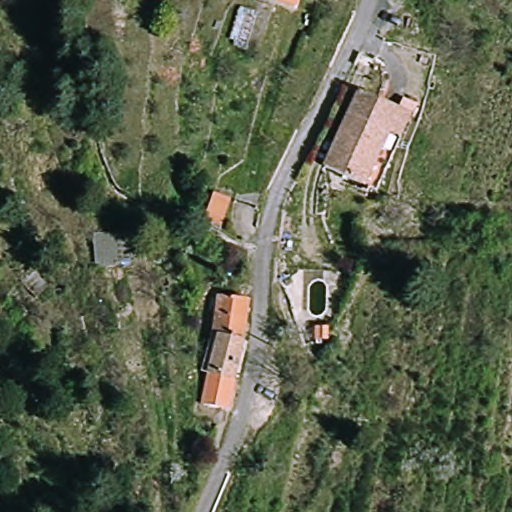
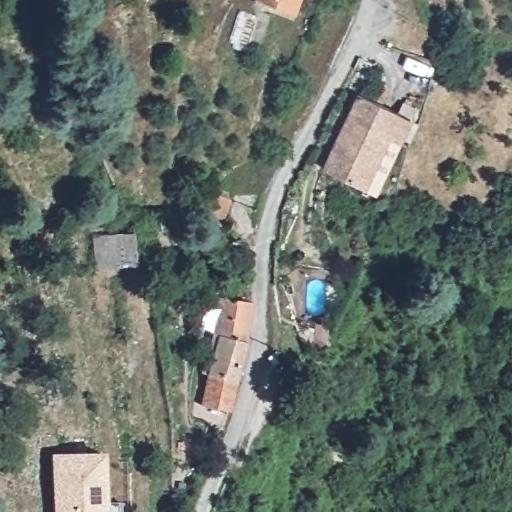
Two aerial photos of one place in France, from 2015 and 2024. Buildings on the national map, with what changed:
unchanged [(254,0),(299,0),(290,19),(254,0)]
unchanged [(381,189),(329,167),(362,92),(414,114),(381,189)]
unchanged [(220,231),(206,223),(209,197),(230,200),(226,233),(220,231)]
unchanged [(96,270),(93,236),(136,232),(139,266),(96,270)]
unchanged [(245,314),(240,357),(231,400),(228,410),(204,403),(217,336),(210,332),(216,300),(246,305),(245,314)]
new [(49,454),(102,451),(105,512),(52,512),(49,454)]

